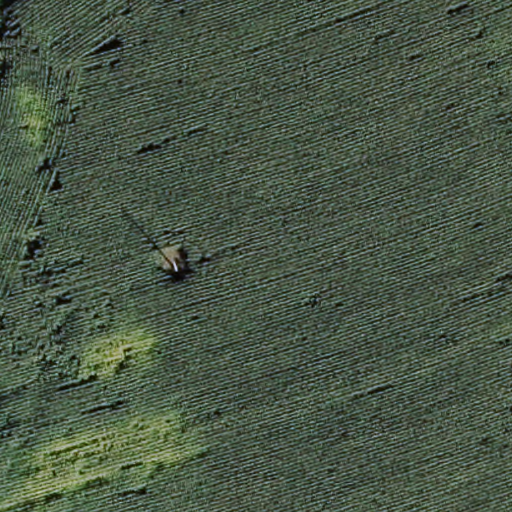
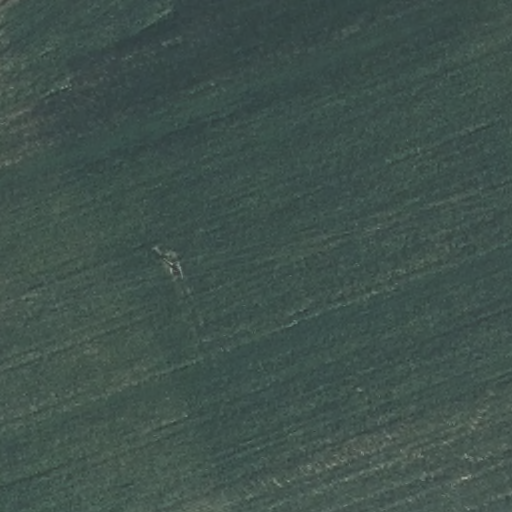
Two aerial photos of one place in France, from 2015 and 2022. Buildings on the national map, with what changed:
[]

